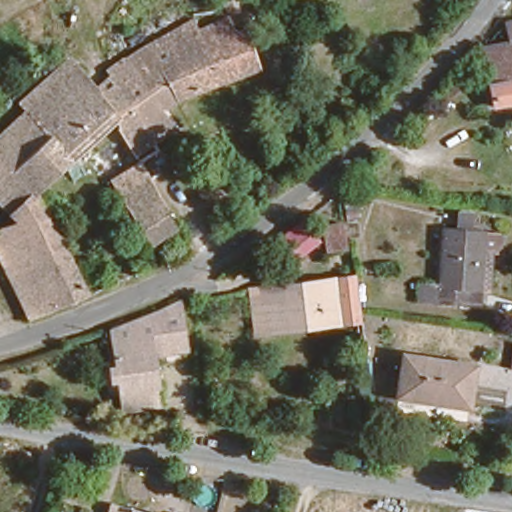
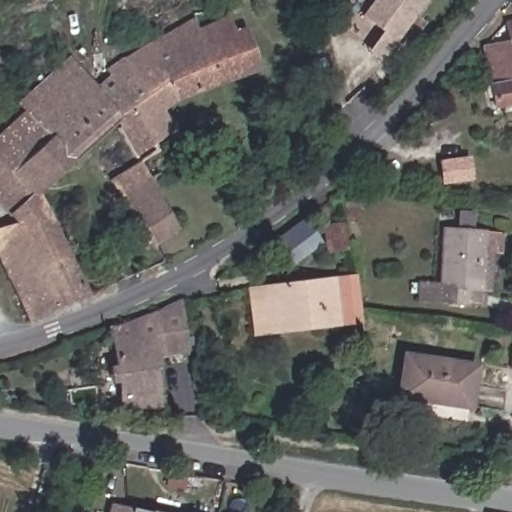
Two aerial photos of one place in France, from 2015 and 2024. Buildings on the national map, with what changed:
unchanged [(225,0),(238,0),(227,5),(225,0)]
new [(366,53),(381,31),(359,16),(371,0),(427,0),(382,64),(366,53)]
unchanged [(248,25),(259,62),(166,103),(179,125),(137,154),(118,123),(37,193),(91,288),(28,319),(0,262),(0,225),(16,217),(0,199),(0,129),(23,108),(17,101),(69,54),(98,90),(106,86),(102,76),(110,72),(106,66),(193,16),(198,26),(228,12),(230,29),(248,25)]
unchanged [(493,108),(484,49),(512,43),(512,105),(493,108)]
unchanged [(149,247),(109,180),(135,165),(145,182),(149,182),(177,228),(149,247)]
unchanged [(442,222),(496,229),(483,300),(435,292),(442,222)]
unchanged [(318,261),(314,227),(334,224),(338,259),(318,261)]
unchanged [(270,263),(296,233),(313,247),(287,278),(270,263)]
unchanged [(354,321),(314,325),(313,316),(281,319),(277,283),(347,275),(353,311),(354,321)]
unchanged [(313,316),(314,325),(265,330),(260,284),(277,283),(281,319),(313,316)]
unchanged [(119,385),(118,377),(107,378),(105,363),(117,361),(113,324),(154,305),(183,303),(187,346),(151,351),(153,383),(155,403),(120,406),(119,385)]
unchanged [(398,393),(405,354),(472,365),(466,404),(398,393)]
unchanged [(112,499),(177,512),(109,512),(112,499)]

